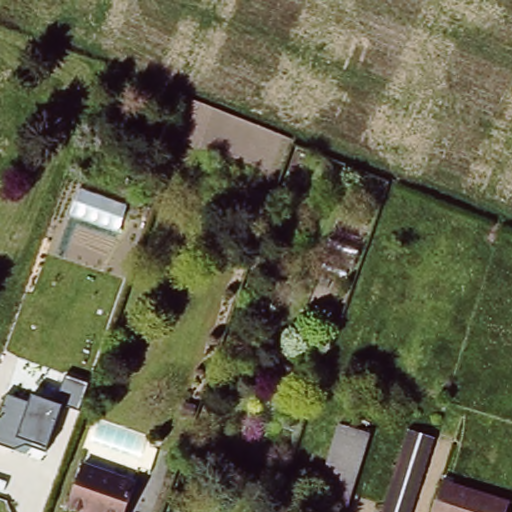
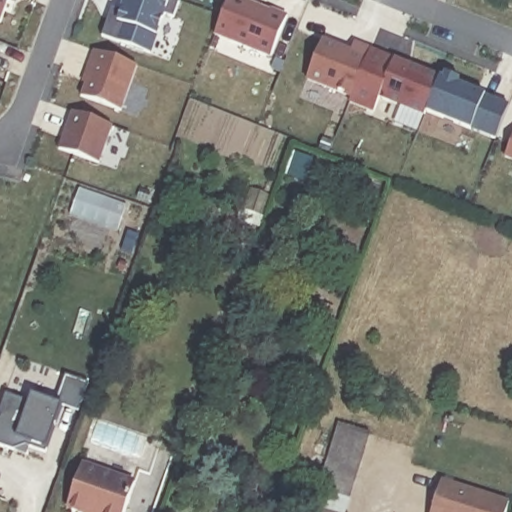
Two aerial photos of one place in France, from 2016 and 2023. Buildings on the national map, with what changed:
new [(10,0),(2,24),(0,23),(0,0),(10,0)]
new [(157,36),(152,55),(101,37),(110,9),(120,13),(124,0),(171,0),(179,2),(173,18),(164,16),(157,36)]
new [(215,36),(228,0),(244,0),(269,10),(270,9),(287,16),(272,59),(215,36)]
new [(497,139),(472,130),(425,112),(423,117),(379,100),(373,114),(349,105),(350,99),(305,81),(322,39),(350,50),(354,41),(395,58),(442,75),(445,73),(462,80),(460,82),(488,95),(507,105),(497,139)]
new [(80,97),(94,51),(137,65),(122,111),(80,97)]
new [(100,165),(58,150),(70,111),(113,126),(100,165)]
new [(512,135),(512,161),(504,159),(512,135)]
new [(250,187),(272,195),(264,217),(242,209),(250,187)]
new [(14,450),(0,445),(0,411),(6,393),(29,402),(32,395),(55,403),(65,375),(89,383),(79,411),(62,405),(46,452),(26,445),(30,447),(27,455),(14,450)]
unchanged [(376,431),(348,512),(303,512),(300,511),(302,485),(319,486),(337,417),(376,431)]
demolished [(407,423),(437,434),(411,512),(379,512),(407,423)]
unchanged [(128,512),(82,512),(73,509),(87,467),(137,484),(128,512)]
unchanged [(505,512),(429,512),(440,477),(510,500),(505,512)]

